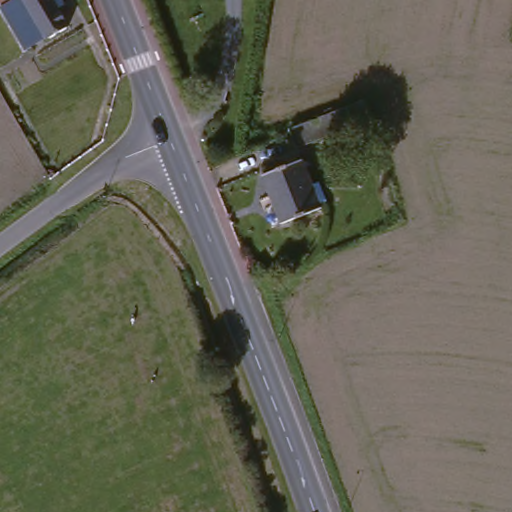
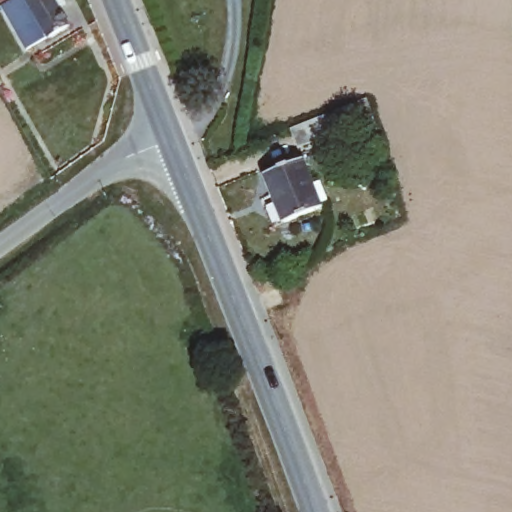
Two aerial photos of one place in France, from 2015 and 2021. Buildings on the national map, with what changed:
unchanged [(3,0),(61,0),(73,21),(31,46),(16,21),(3,0)]
unchanged [(366,98),(373,115),(298,145),(291,128),(366,98)]
unchanged [(311,182),(318,180),(327,198),(318,201),(320,206),(283,221),(263,171),(303,156),(311,182)]

